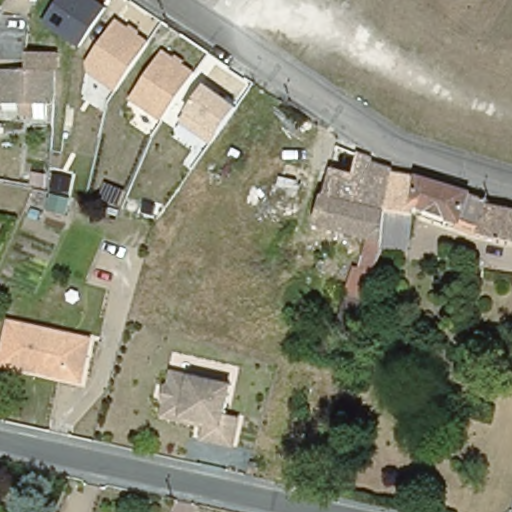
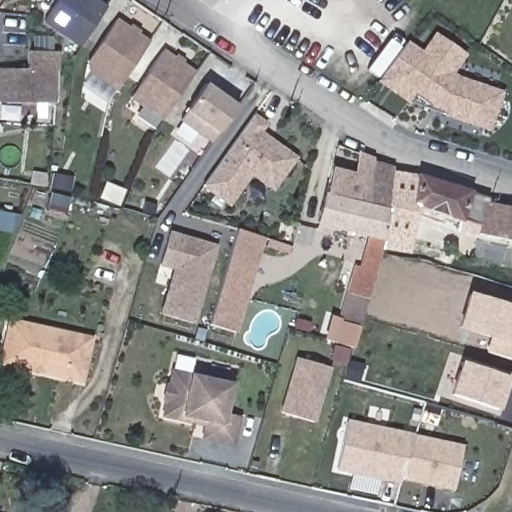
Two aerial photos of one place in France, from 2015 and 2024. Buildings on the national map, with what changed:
unchanged [(48,20),(62,0),(102,0),(110,5),(82,44),(48,20)]
unchanged [(117,90),(91,72),(91,61),(119,20),(149,40),(117,90)]
new [(415,95),(410,102),(381,80),(408,42),(440,65),(454,46),(464,54),(451,73),(458,77),(502,92),(489,130),(469,124),(426,109),(429,105),(415,95)]
unchanged [(28,50),(56,51),(55,69),(54,104),(3,103),(0,102),(0,66),(27,67),(28,50)]
unchanged [(164,117),(133,95),(165,50),(196,72),(164,117)]
unchanged [(212,143),(181,122),(190,111),(208,84),(240,106),(220,132),(212,143)]
new [(273,187),(250,171),(229,204),(204,184),(256,115),(269,125),(262,132),(267,135),(265,139),(271,142),(273,140),(295,157),(273,187)]
demolished [(278,160),(263,156),(248,151),(251,140),(281,149),(278,160)]
unchanged [(373,160),(372,164),(393,170),(392,174),(376,245),(363,298),(343,294),(350,267),(356,268),(364,238),(315,223),(322,196),(332,162),(337,146),(373,160)]
unchanged [(487,199),(486,202),(512,209),(512,241),(477,231),(479,225),(413,205),(403,250),(376,245),(392,174),(418,179),(487,199)]
demolished [(301,202),(290,200),(288,204),(266,199),(272,181),(304,191),(301,202)]
unchanged [(69,200),(66,214),(49,209),(52,195),(69,200)]
new [(22,215),(12,237),(0,232),(0,211),(22,215)]
new [(196,322),(161,313),(173,270),(161,265),(172,230),(218,244),(196,322)]
new [(239,230),(266,237),(250,292),(224,285),(239,230)]
new [(512,305),(512,359),(485,351),(486,337),(457,328),(468,292),(512,305)]
unchanged [(92,340),(83,381),(4,362),(14,320),(92,340)]
new [(317,420),(280,411),(295,355),(331,366),(317,420)]
new [(463,362),(512,380),(512,386),(504,410),(453,392),(463,362)]
unchanged [(167,421),(169,408),(167,403),(170,390),(174,387),(177,375),(236,387),(229,419),(243,422),(238,450),(207,442),(209,430),(199,428),(167,421)]
new [(337,471),(348,420),(412,433),(401,485),(337,471)]
new [(463,444),(452,490),(402,480),(412,434),(463,444)]

